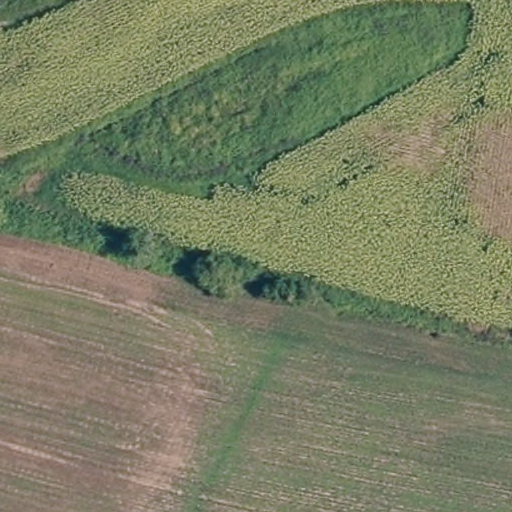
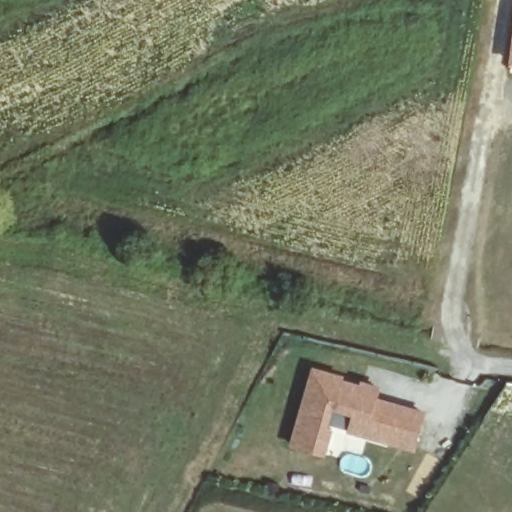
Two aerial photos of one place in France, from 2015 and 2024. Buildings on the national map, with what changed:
new [(345,375),(344,379),(360,384),(361,381),(382,387),(379,399),(427,411),(416,452),(347,434),(348,431),(333,428),(325,456),(291,446),(312,367),(345,375)]

